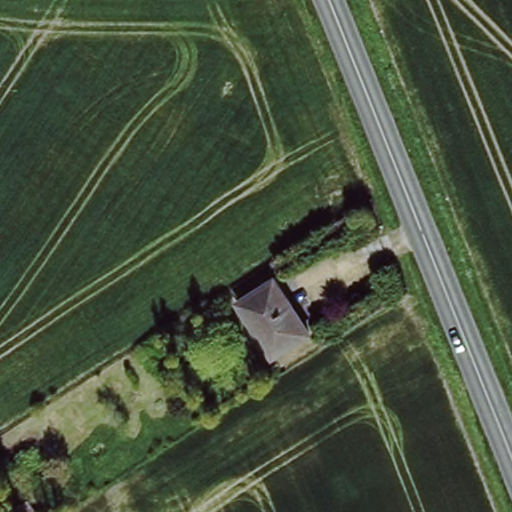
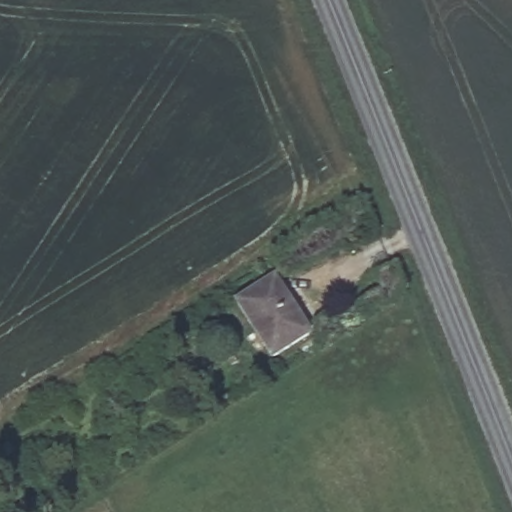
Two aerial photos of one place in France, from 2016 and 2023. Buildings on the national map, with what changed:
unchanged [(280,275),(314,331),(279,352),(245,297),(280,275)]

